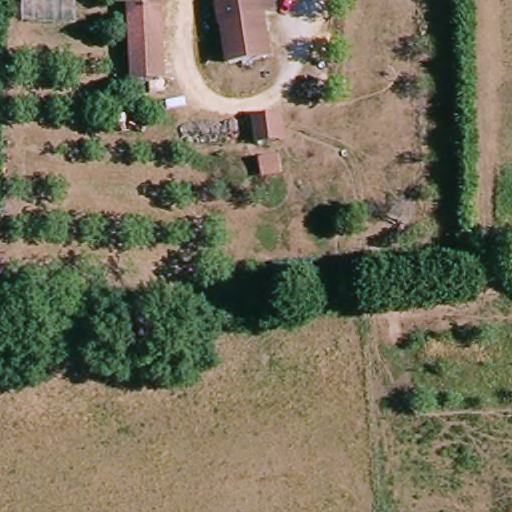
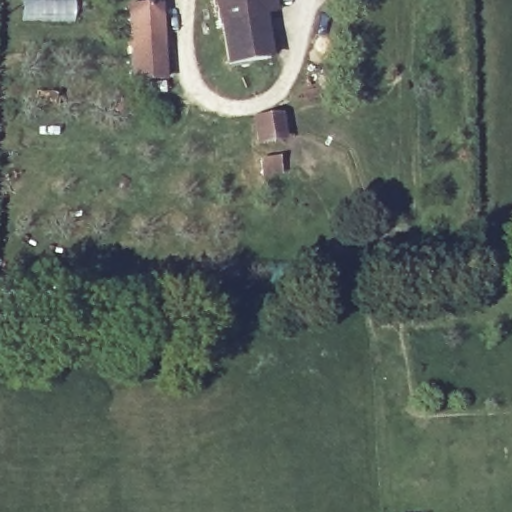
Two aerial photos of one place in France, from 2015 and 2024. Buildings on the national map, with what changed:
unchanged [(279,56),(236,61),(228,0),(272,0),(274,9),(279,56)]
unchanged [(274,9),(272,0),(291,0),(292,4),(274,9)]
unchanged [(137,8),(166,8),(165,83),(134,80),(137,8)]
unchanged [(295,119),(321,115),(324,134),(299,139),(295,119)]

